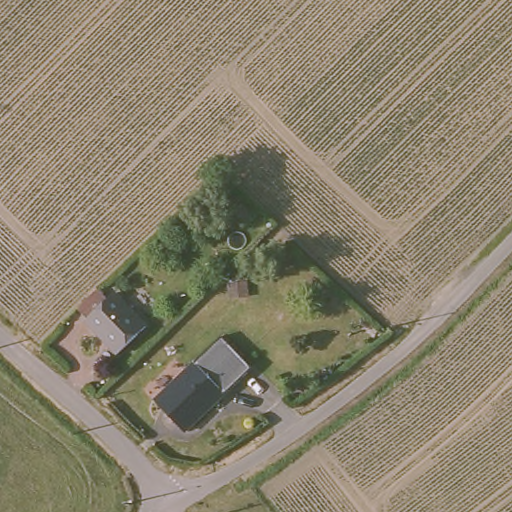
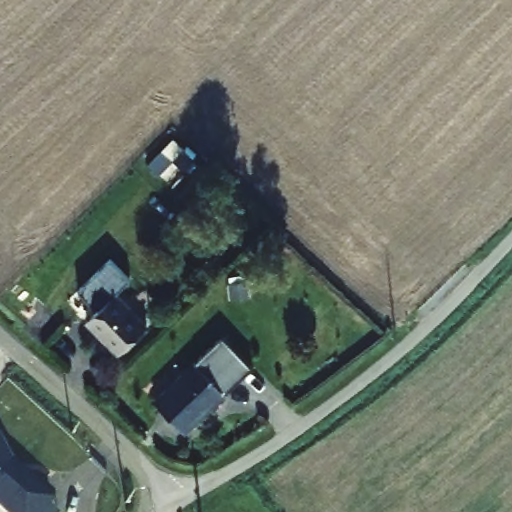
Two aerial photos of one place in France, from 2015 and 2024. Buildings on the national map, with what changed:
unchanged [(127,353),(118,344),(91,316),(93,314),(85,305),(97,293),(105,285),(115,294),(121,289),(148,318),(156,326),(127,353)]
unchanged [(199,358),(229,392),(187,429),(157,395),(199,358)]
new [(16,456),(55,492),(38,512),(18,512),(0,496),(0,430),(2,429),(16,456)]

